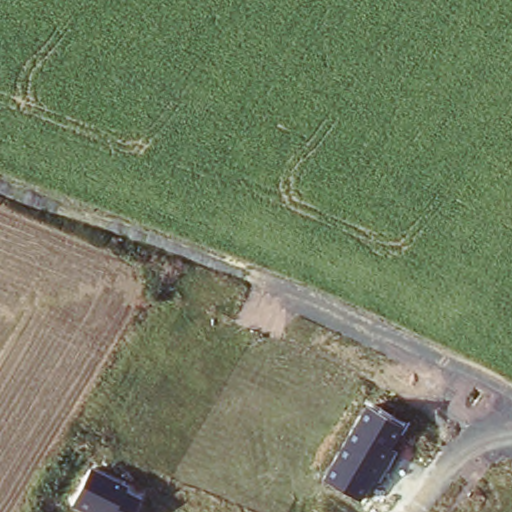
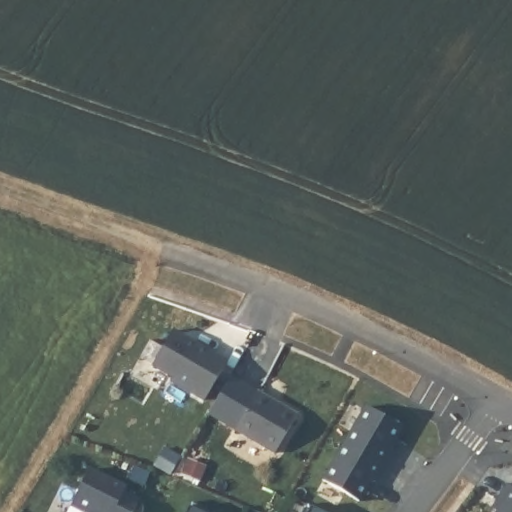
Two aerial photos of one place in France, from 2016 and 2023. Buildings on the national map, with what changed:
new [(174,332),(229,362),(207,400),(174,382),(176,378),(155,367),(174,332)]
new [(257,392),(299,416),(277,455),(235,431),(257,392)]
unchanged [(366,403),(404,425),(360,502),(322,479),(366,403)]
unchanged [(89,467),(129,486),(127,492),(141,498),(134,512),(86,512),(71,505),(89,467)]
new [(499,503),(508,487),(512,489),(512,512),(501,512),(504,506),(499,503)]
new [(205,512),(185,512),(189,505),(205,512)]
new [(319,512),(302,512),(306,506),(319,512)]

